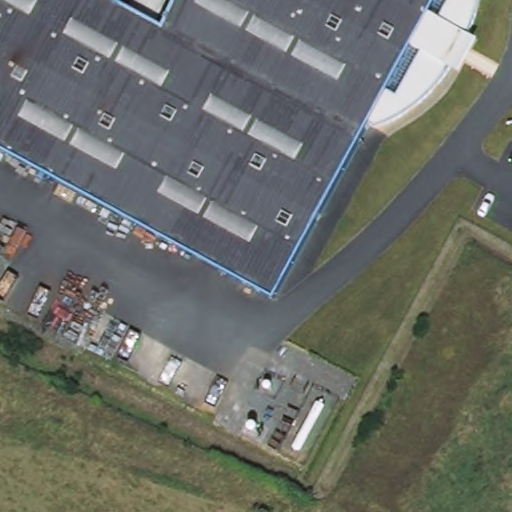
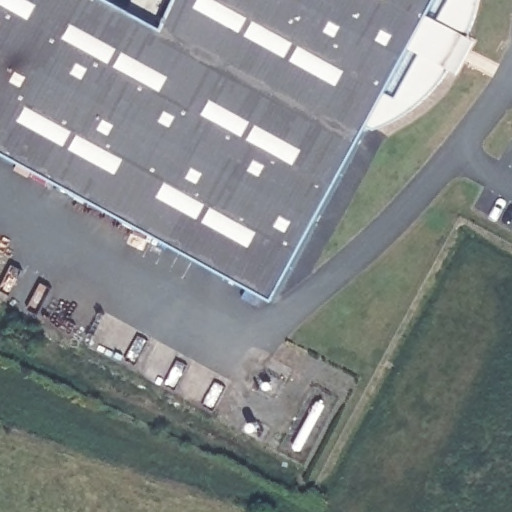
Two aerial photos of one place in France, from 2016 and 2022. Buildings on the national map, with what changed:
unchanged [(477,1),(470,32),(477,37),(462,70),(456,68),(430,98),(398,119),(377,129),(367,122),(271,298),(0,151),(0,0),(113,0),(162,27),(174,0),(478,0),(477,1)]

